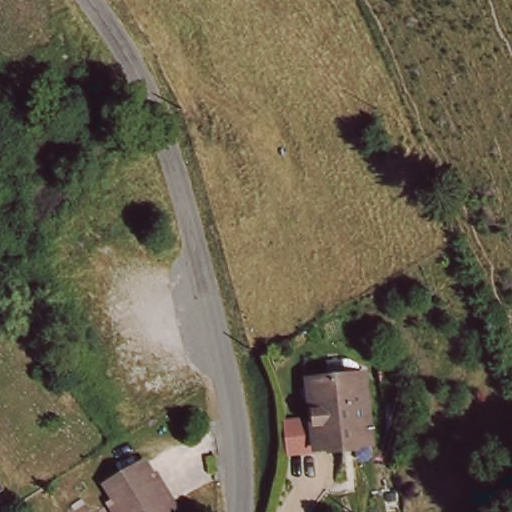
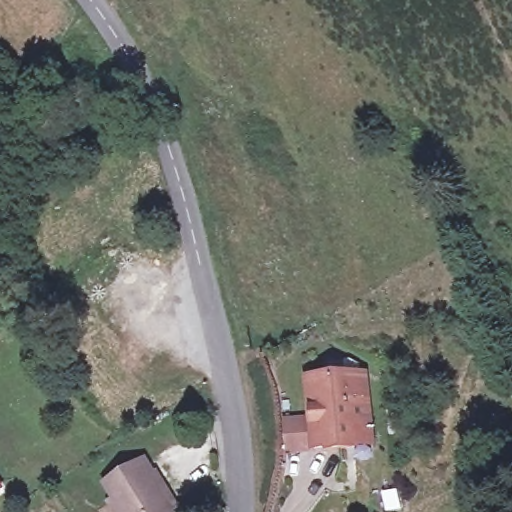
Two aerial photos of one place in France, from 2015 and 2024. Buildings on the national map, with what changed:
unchanged [(327,365),(350,364),(358,369),(359,380),(360,380),(361,400),(365,400),(368,448),(312,452),(311,432),(308,384),(317,384),(328,383),(327,365)]
unchanged [(145,474),(169,512),(118,512),(100,483),(137,456),(148,473),(145,474)]
unchanged [(1,485),(0,485),(0,484),(1,485)]

